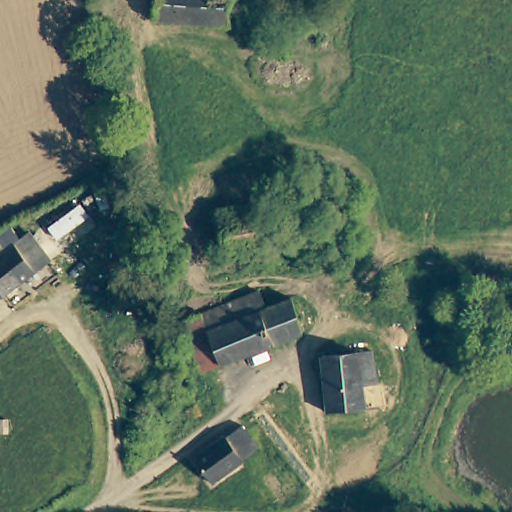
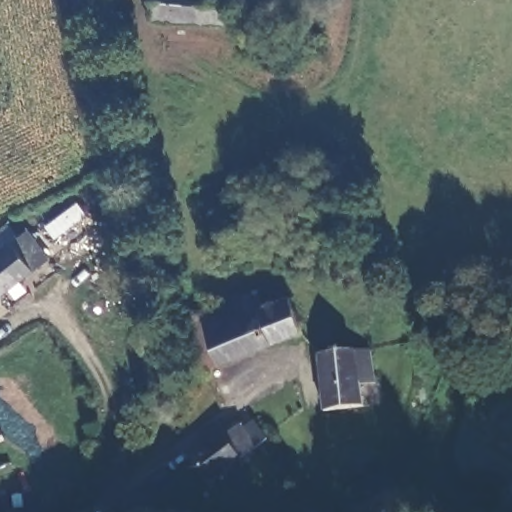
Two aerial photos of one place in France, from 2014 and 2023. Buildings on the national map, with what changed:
unchanged [(151,14),(151,0),(226,0),(225,17),(151,14)]
unchanged [(0,227),(8,222),(19,233),(0,248),(0,227)]
unchanged [(0,294),(0,248),(19,233),(24,229),(25,231),(45,261),(6,292),(1,295),(0,294)]
unchanged [(177,321),(251,292),(257,308),(283,298),(296,332),(197,371),(177,321)]
unchanged [(0,294),(1,295),(0,295),(0,294)]
unchanged [(373,377),(371,378),(356,381),(360,402),(322,411),(310,354),(364,342),(373,377)]
unchanged [(239,453),(202,477),(183,447),(217,426),(219,430),(234,422),(251,446),(239,453)]
unchanged [(277,510),(249,467),(239,453),(251,446),(275,430),(312,488),(283,507),(277,510)]

